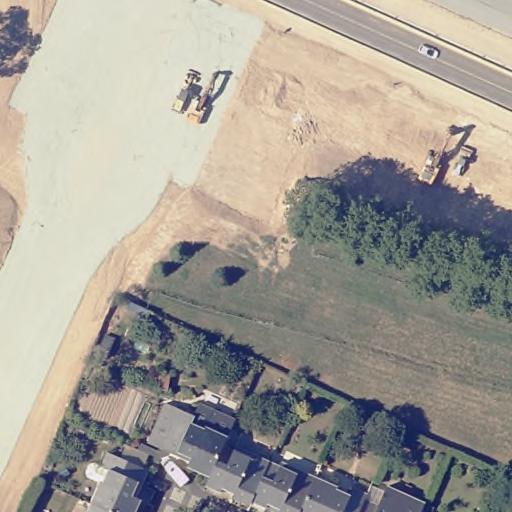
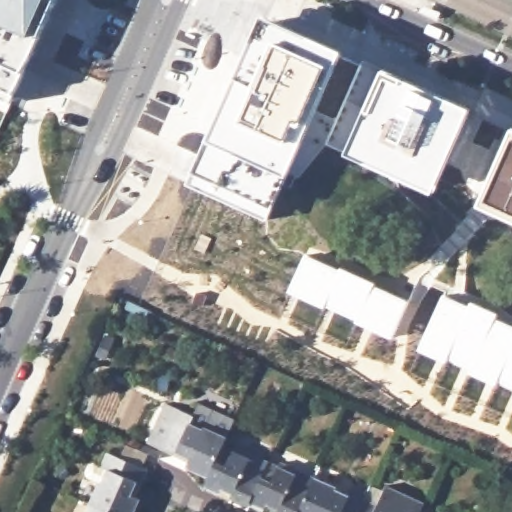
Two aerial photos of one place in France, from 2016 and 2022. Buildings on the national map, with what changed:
new [(6,105),(0,102),(0,0),(53,0),(20,71),(6,105)]
new [(259,25),(512,132),(498,159),(503,161),(485,200),(480,197),(477,206),(296,132),(258,218),(187,192),(259,25)]
new [(480,197),(485,200),(503,161),(498,159),(512,132),(512,221),(477,206),(480,197)]
unchanged [(190,467),(193,459),(180,452),(179,456),(150,443),(168,406),(196,417),(202,403),(238,420),(227,445),(212,477),(190,467)]
unchanged [(125,456),(131,442),(153,452),(147,466),(152,468),(145,483),(142,482),(136,496),(143,499),(137,512),(118,512),(96,502),(104,482),(92,477),(90,473),(96,461),(99,460),(108,464),(114,452),(125,456)]
unchanged [(237,450),(239,446),(272,461),(254,501),(252,505),(236,497),(237,495),(225,490),(223,492),(208,486),(212,477),(227,445),(237,450)]
unchanged [(283,510),(272,505),(270,508),(254,501),(272,461),(283,466),(285,462),(319,477),(303,512),(282,512),(283,510)]
unchanged [(319,477),(341,487),(340,489),(352,495),(356,488),(369,493),(367,498),(361,512),(303,512),(319,477)]
unchanged [(367,498),(382,504),(390,487),(428,503),(424,512),(361,512),(367,498)]
unchanged [(96,502),(118,512),(91,512),(96,502)]

